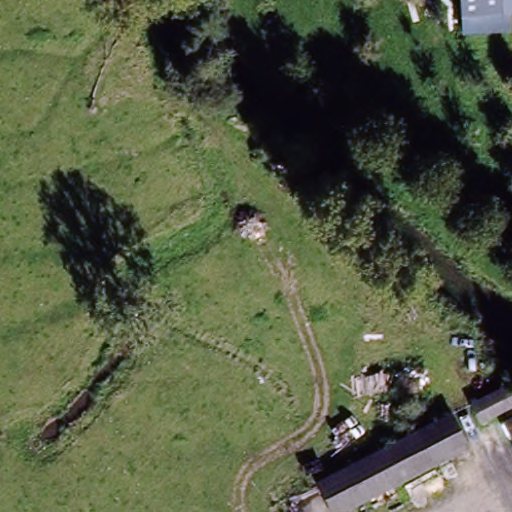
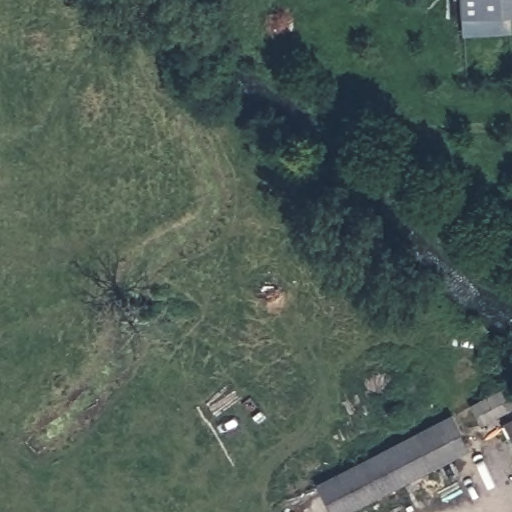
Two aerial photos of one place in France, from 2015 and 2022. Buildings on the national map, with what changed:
unchanged [(459,17),(458,0),(512,0),(512,14),(459,17)]
unchanged [(472,401),(509,383),(512,389),(512,402),(481,418),(472,401)]
unchanged [(467,450),(341,512),(331,512),(314,482),(450,411),(467,450)]

